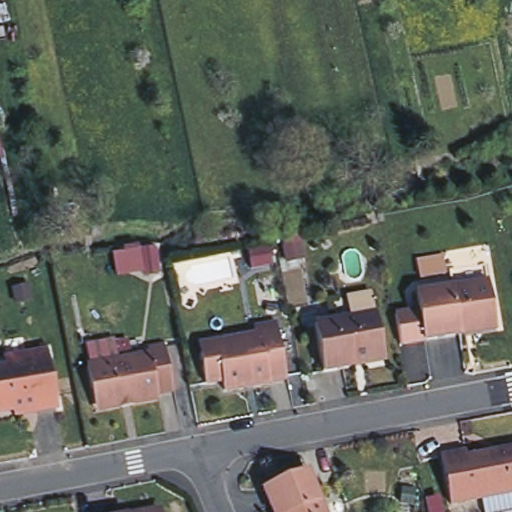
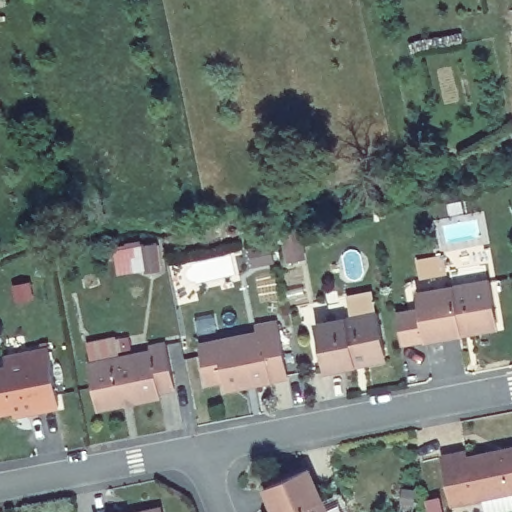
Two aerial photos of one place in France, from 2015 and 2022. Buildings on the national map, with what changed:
unchanged [(157,244),(160,271),(117,277),(112,251),(157,244)]
unchanged [(461,335),(425,341),(419,294),(454,288),(490,282),(497,324),(497,330),(461,335)]
unchanged [(355,360),(324,366),(315,319),(376,307),(384,349),(385,355),(355,360)]
unchanged [(254,325),(277,321),(287,376),(270,379),(270,381),(224,390),(222,380),(205,383),(200,354),(197,344),(218,340),(255,333),(254,325)]
unchanged [(29,348),(50,345),(60,401),(39,405),(37,401),(0,408),(0,364),(9,362),(7,352),(29,348)]
unchanged [(149,354),(147,348),(165,345),(174,389),(159,392),(159,397),(95,409),(87,365),(149,354)]
unchanged [(465,452),(467,458),(512,449),(512,494),(450,506),(441,458),(465,452)]
unchanged [(307,470),(325,512),(274,512),(264,488),(307,470)]
unchanged [(154,509),(159,512),(139,512),(142,511),(154,509)]

